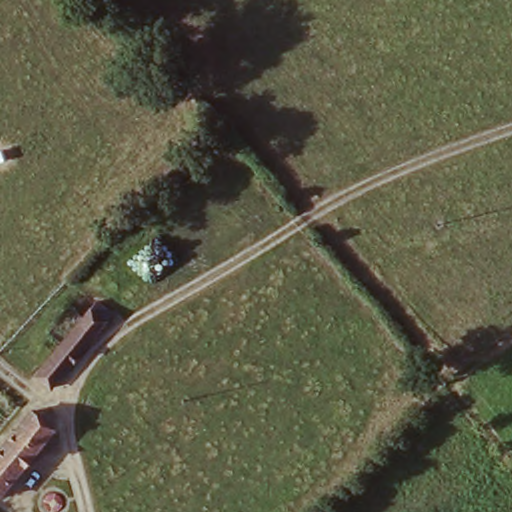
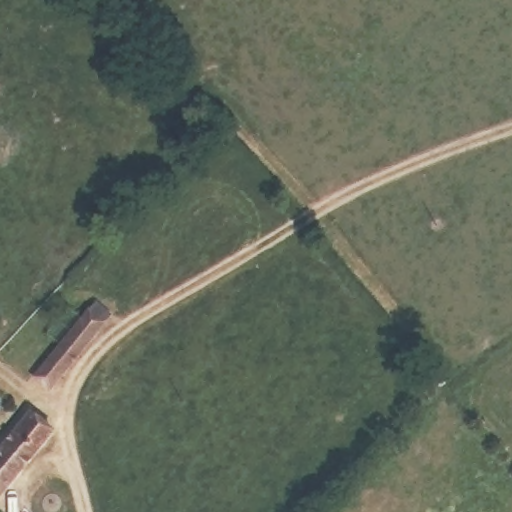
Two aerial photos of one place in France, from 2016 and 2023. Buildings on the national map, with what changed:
unchanged [(95,298),(111,312),(54,383),(39,371),(95,298)]
unchanged [(29,418),(50,435),(0,497),(0,453),(29,418)]

